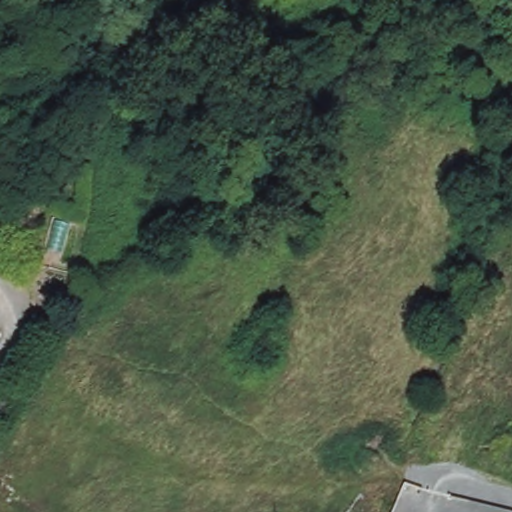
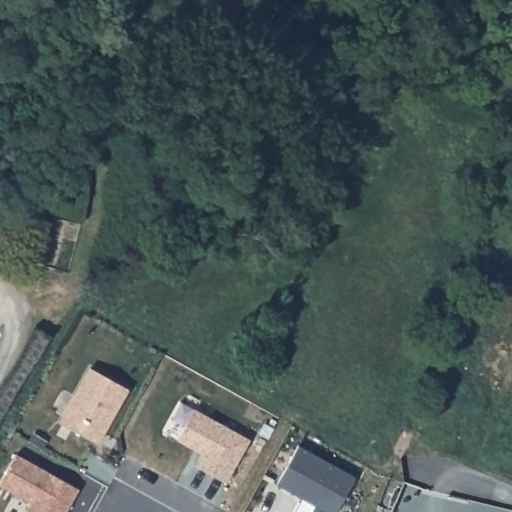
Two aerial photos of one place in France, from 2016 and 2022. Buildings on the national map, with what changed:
new [(90,368),(128,390),(98,442),(61,422),(90,368)]
new [(194,410),(250,440),(226,482),(195,466),(202,453),(177,440),(194,410)]
new [(356,477),(336,512),(327,512),(277,485),(298,446),(356,477)]
new [(79,490),(66,512),(26,512),(31,502),(0,486),(0,482),(16,455),(79,490)]

